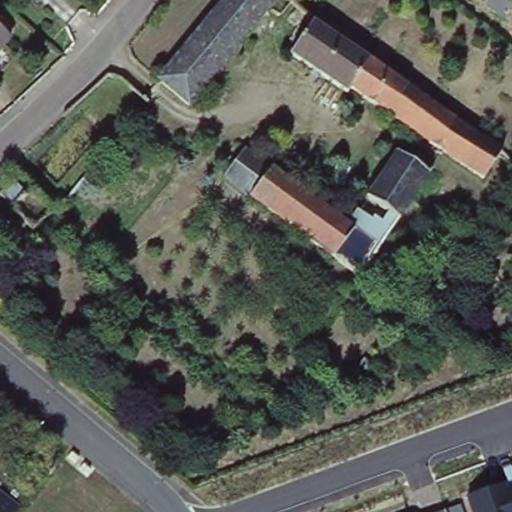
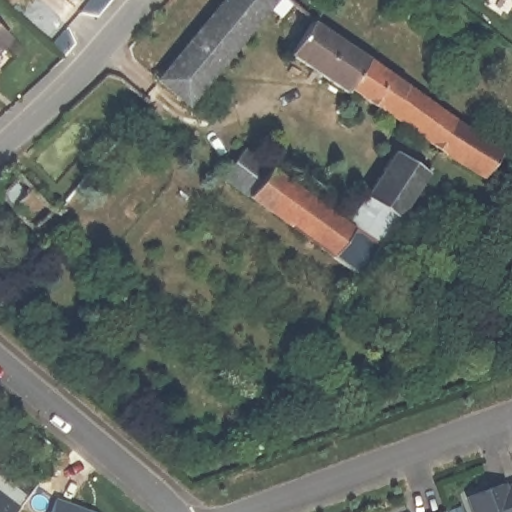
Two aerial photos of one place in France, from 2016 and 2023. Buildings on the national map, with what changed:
unchanged [(212,16),(225,0),(316,0),(326,9),(316,22),(346,43),(424,95),(504,151),(485,179),(446,152),(352,88),(348,93),(292,56),(292,54),(287,50),(292,45),(289,43),(297,31),(282,18),(271,9),(231,56),(191,105),(160,80),(194,38),(212,16)]
unchanged [(0,48),(0,30),(9,37),(0,48)]
unchanged [(246,146),(311,195),(356,229),(334,257),(224,176),(246,146)]
unchanged [(367,197),(398,150),(431,173),(401,219),(367,197)]
unchanged [(60,200),(62,199),(68,205),(60,213),(54,205),(60,200)]
unchanged [(356,229),(382,247),(374,259),(362,277),(334,257),(356,229)]
unchanged [(360,360),(369,346),(377,351),(367,365),(360,360)]
unchanged [(473,512),(468,497),(503,485),(505,490),(512,488),(512,512),(473,512)]
unchanged [(13,512),(0,512),(0,492),(19,505),(13,512)]
new [(51,512),(56,498),(95,512),(51,512)]
unchanged [(462,512),(440,512),(459,505),(462,512)]

